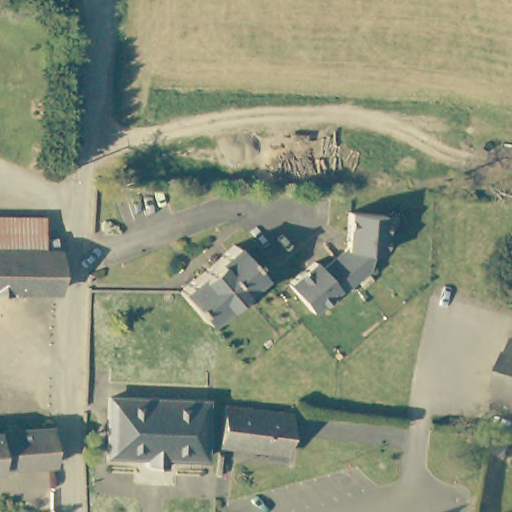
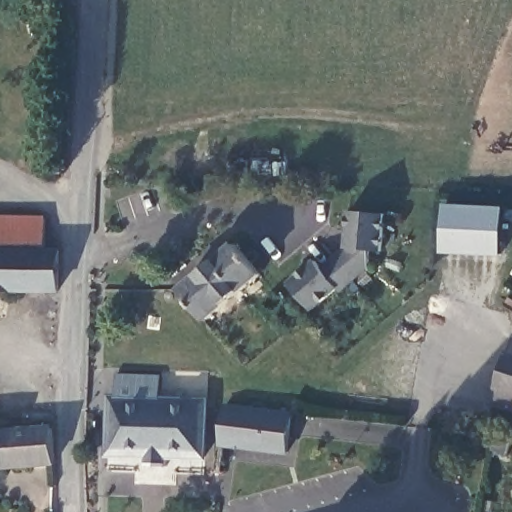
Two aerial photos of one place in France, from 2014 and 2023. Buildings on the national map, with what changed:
new [(503,257),(442,255),(444,204),(504,207),(503,257)]
unchanged [(386,217),(384,255),(372,254),(372,269),(357,281),(344,293),(341,289),(315,311),(292,284),(319,261),(325,270),(338,259),(349,250),(350,235),(351,215),(386,217)]
unchanged [(47,221),(48,254),(63,254),(61,289),(0,288),(0,221),(47,221)]
unchanged [(243,255),(249,261),(259,274),(205,320),(198,311),(193,306),(179,289),(201,270),(207,265),(232,243),(243,255)]
unchanged [(504,356),(506,340),(512,342),(512,412),(495,408),(498,393),(494,392),(501,355),(504,356)]
unchanged [(209,453),(171,453),(171,465),(150,465),(150,453),(112,453),(113,398),(210,399),(209,453)]
unchanged [(260,409),(272,410),(277,410),(287,411),(286,451),(234,446),(227,445),(220,445),(222,425),(222,406),(235,407),(251,408),(260,409)]
unchanged [(55,427),(58,464),(0,469),(0,431),(55,427)]

